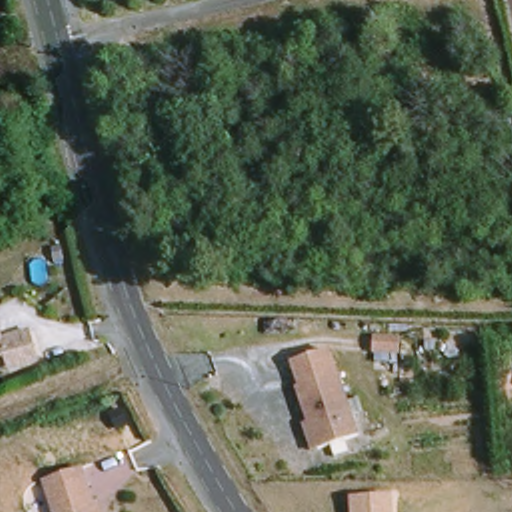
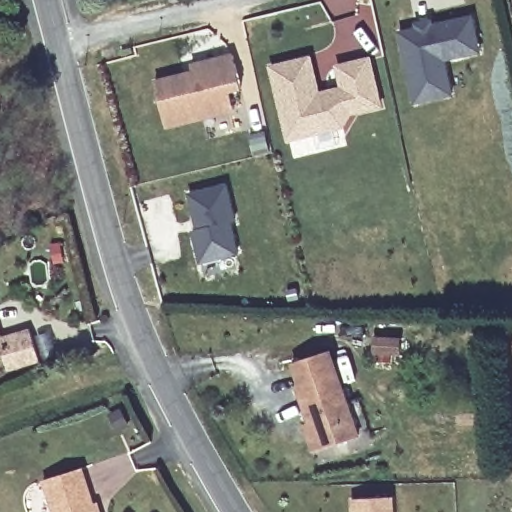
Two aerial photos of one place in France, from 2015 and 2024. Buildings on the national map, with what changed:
new [(418,22),(431,19),(432,24),(475,14),(478,29),(482,49),(469,53),(447,57),(455,92),(417,101),(402,30),(419,26),(418,22)]
new [(231,108),(162,125),(152,80),(190,72),(188,64),(230,54),(239,86),(244,105),(231,108)]
new [(315,56),(323,92),(349,86),(343,64),(374,57),(385,103),(356,110),(348,123),(294,136),(276,66),(315,56)]
new [(228,181),(236,217),(232,219),(240,250),(202,259),(195,226),(199,225),(190,191),(228,181)]
unchanged [(18,353),(0,358),(0,304),(5,307),(9,322),(14,337),(43,328),(52,357),(35,362),(22,366),(18,353)]
unchanged [(407,356),(382,355),(383,340),(408,341),(407,356)]
unchanged [(303,422),(309,420),(297,386),(300,385),(291,361),(328,348),(345,398),(357,394),(370,429),(357,433),(318,446),(313,448),(303,422)]
unchanged [(81,473),(92,508),(96,507),(98,512),(52,512),(43,485),(81,473)]
unchanged [(395,496),(396,512),(354,512),(353,498),(395,496)]

